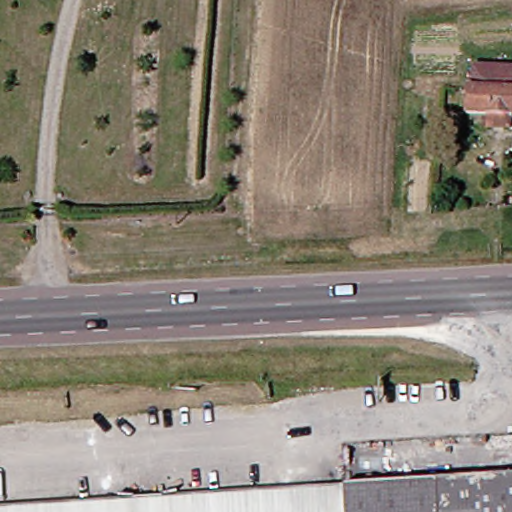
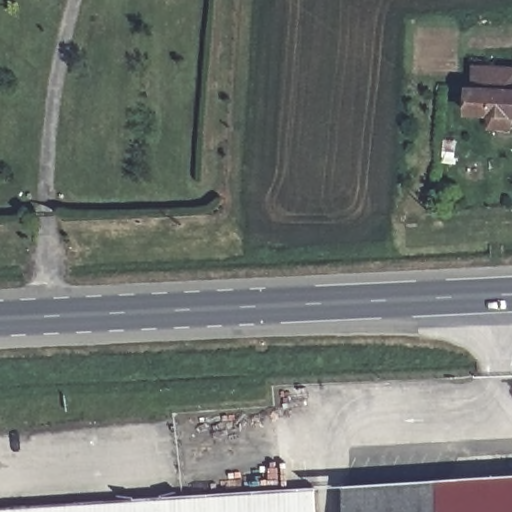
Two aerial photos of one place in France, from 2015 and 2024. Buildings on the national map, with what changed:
unchanged [(501,116),(500,130),(478,129),(478,116),(458,115),(459,91),(464,91),(465,68),(508,70),(507,93),(512,93),(512,117),(501,116)]
unchanged [(0,508),(280,491),(339,487),(512,477),(512,512),(0,512),(0,508)]

